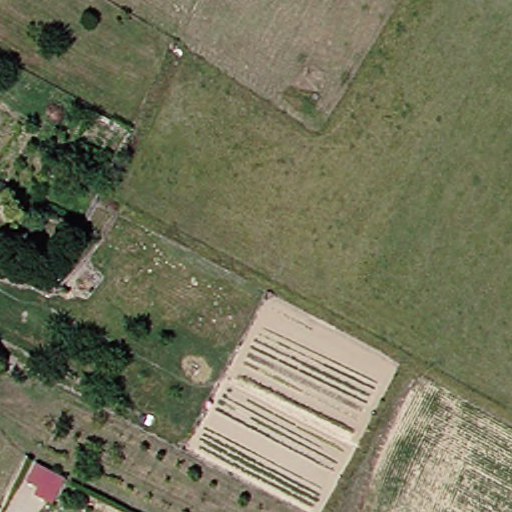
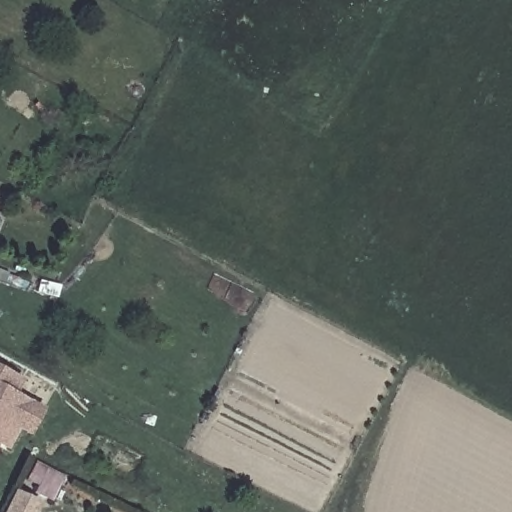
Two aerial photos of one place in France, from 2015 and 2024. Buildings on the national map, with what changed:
new [(11,370),(24,377),(14,395),(43,411),(31,433),(18,426),(7,446),(0,442),(0,364),(11,370)]
new [(20,486),(44,498),(37,512),(7,512),(20,486)]

